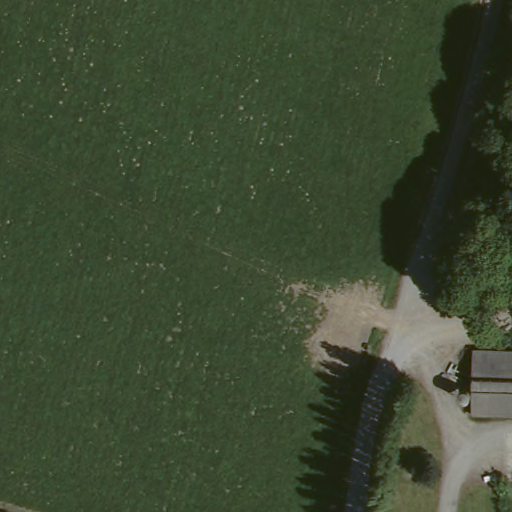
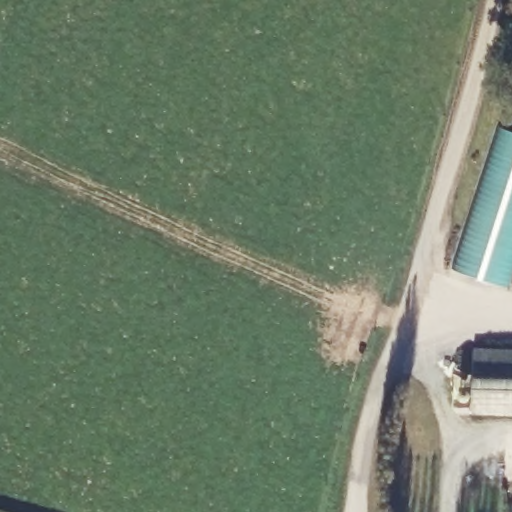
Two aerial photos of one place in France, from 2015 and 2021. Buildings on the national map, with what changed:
new [(512,130),(512,253),(502,283),(461,271),(507,129),(512,130)]
unchanged [(475,415),(473,349),(512,348),(512,413),(475,415)]

